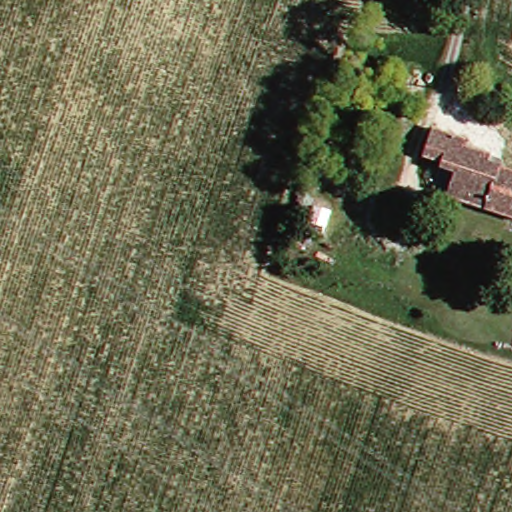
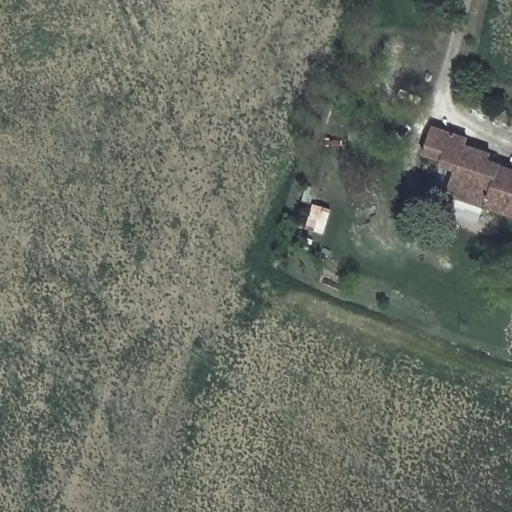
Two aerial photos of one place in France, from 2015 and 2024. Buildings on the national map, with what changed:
unchanged [(453,198),(460,171),(445,164),(446,157),(430,154),(436,124),(475,138),(472,144),(496,152),(495,162),(512,167),(512,217),(488,209),(453,198)]

